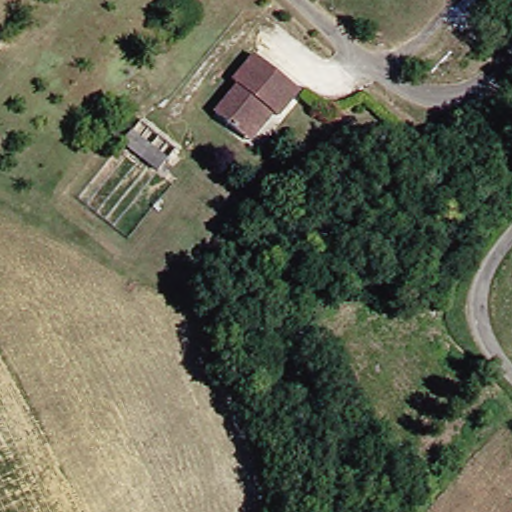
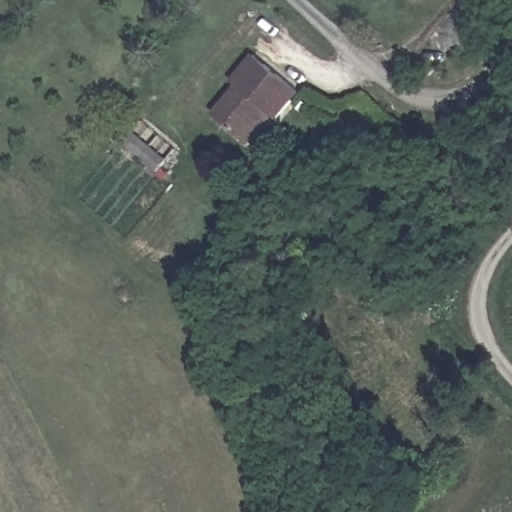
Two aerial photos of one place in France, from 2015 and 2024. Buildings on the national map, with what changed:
unchanged [(247,131),(225,105),(251,80),(242,71),(265,47),(310,93),(288,117),(282,111),(255,139),(247,131)]
unchanged [(140,125),(173,155),(163,168),(128,140),(140,125)]

